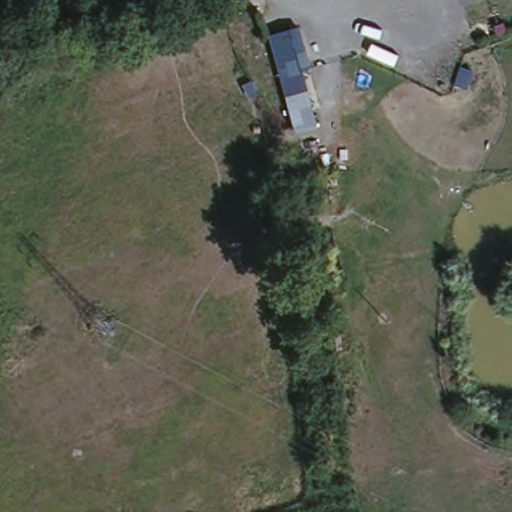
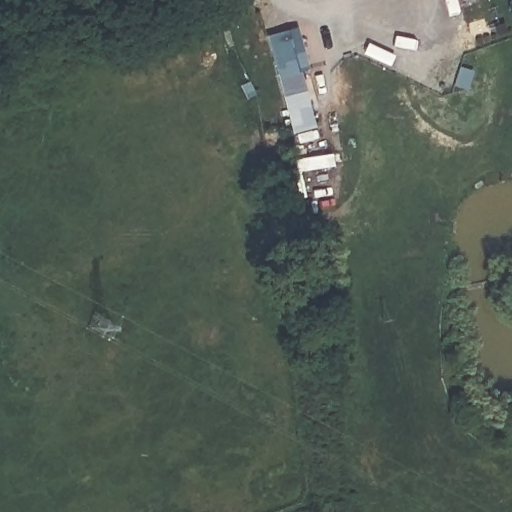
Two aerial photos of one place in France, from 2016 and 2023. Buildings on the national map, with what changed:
unchanged [(316,128),(293,132),(266,34),(292,27),(316,128)]

